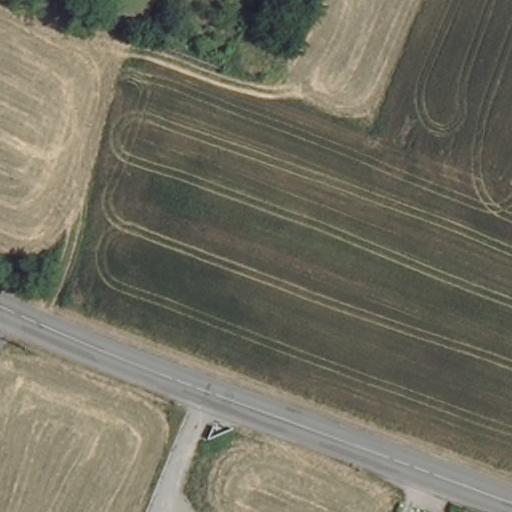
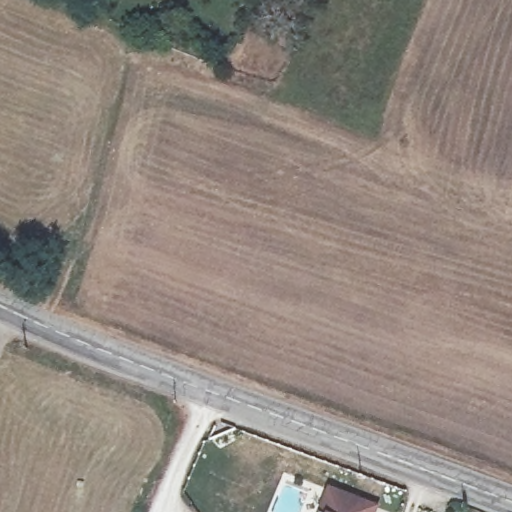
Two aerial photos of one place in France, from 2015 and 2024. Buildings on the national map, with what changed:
new [(318,512),(328,486),(379,504),(377,512),(318,512)]

